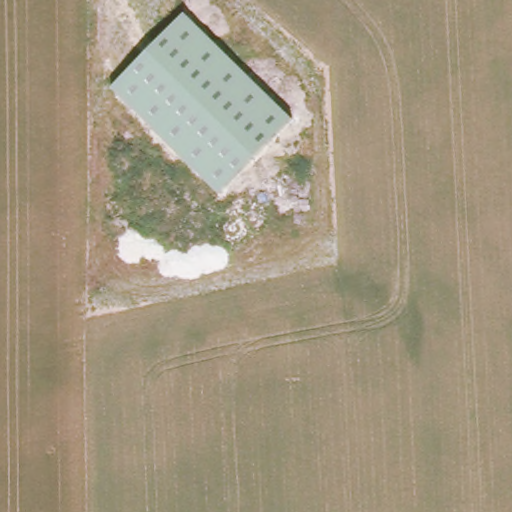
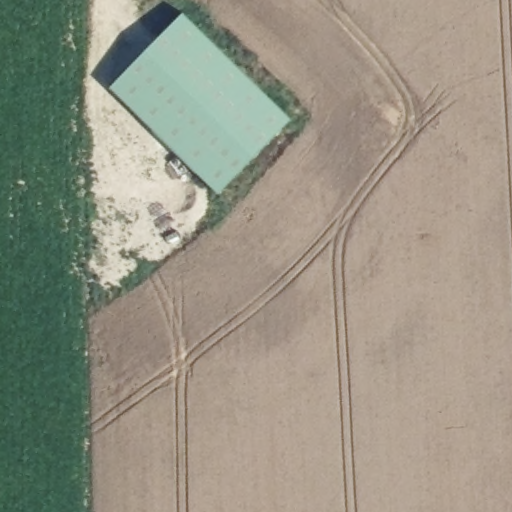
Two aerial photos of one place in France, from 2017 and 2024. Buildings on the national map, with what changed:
unchanged [(292,119),(220,193),(112,88),(185,13),(292,119)]

